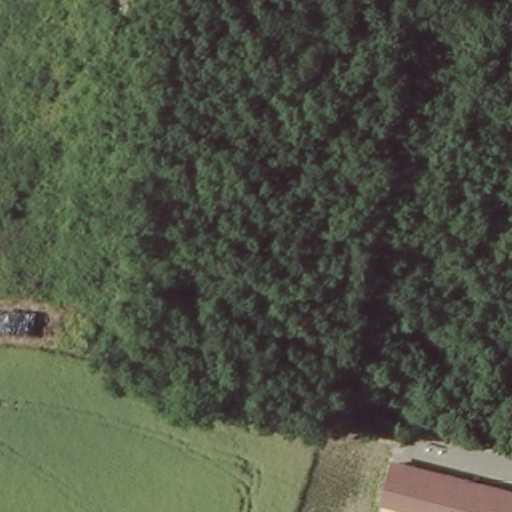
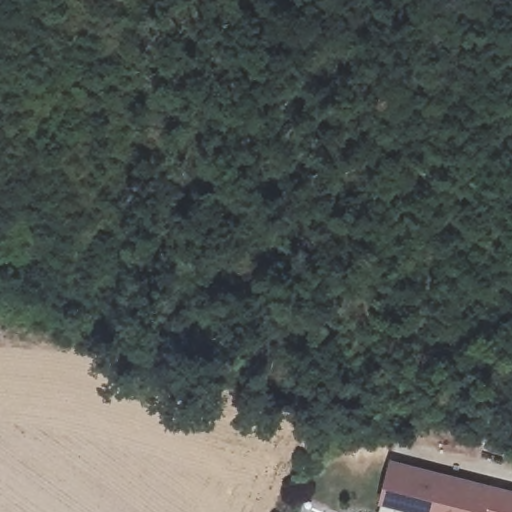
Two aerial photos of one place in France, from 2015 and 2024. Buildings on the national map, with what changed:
unchanged [(377,506),(388,460),(512,492),(512,512),(379,512),(381,507),(377,506)]

